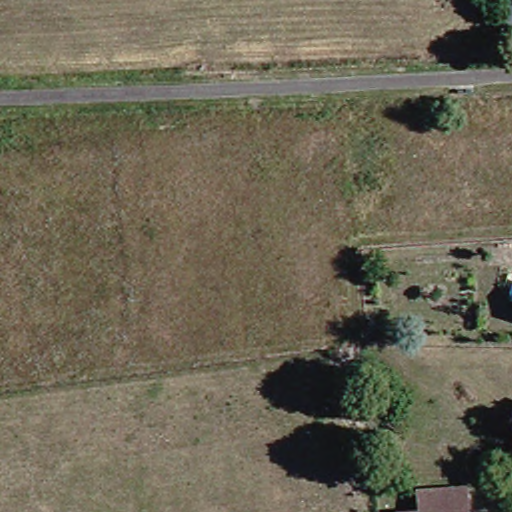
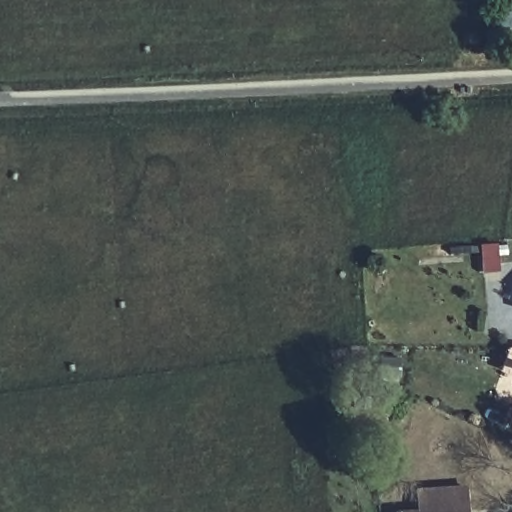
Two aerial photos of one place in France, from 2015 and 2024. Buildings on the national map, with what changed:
unchanged [(496,34),(502,0),(512,0),(512,36),(496,34)]
unchanged [(415,497),(462,492),(462,503),(463,512),(416,512),(416,508),(415,497)]

